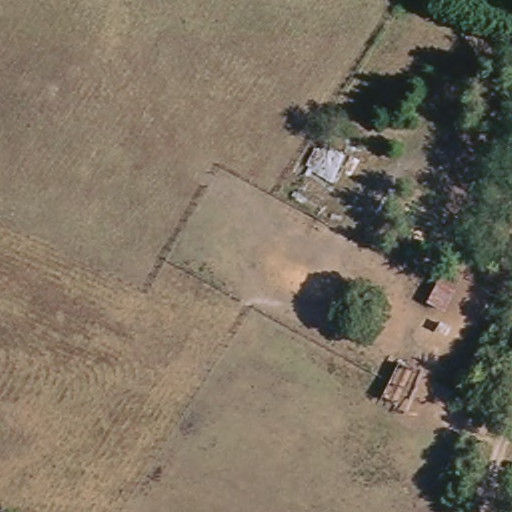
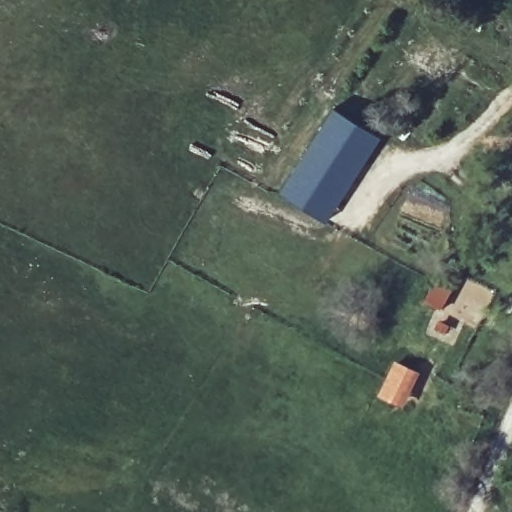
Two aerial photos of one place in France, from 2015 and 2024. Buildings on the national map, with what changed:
new [(331,107),(381,136),(325,224),(278,193),(331,107)]
unchanged [(444,265),(463,274),(443,311),(427,300),(444,265)]
unchanged [(414,367),(399,403),(382,396),(398,360),(414,367)]

